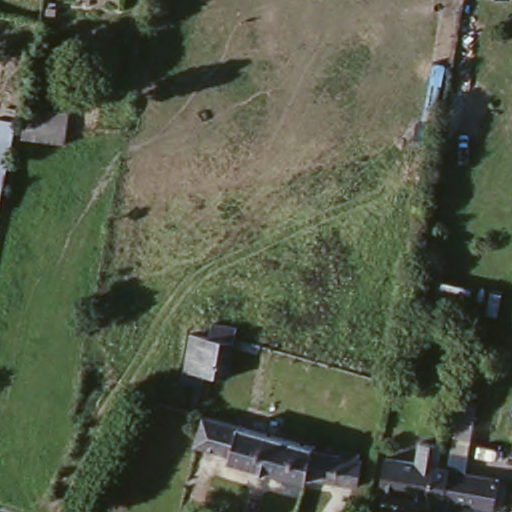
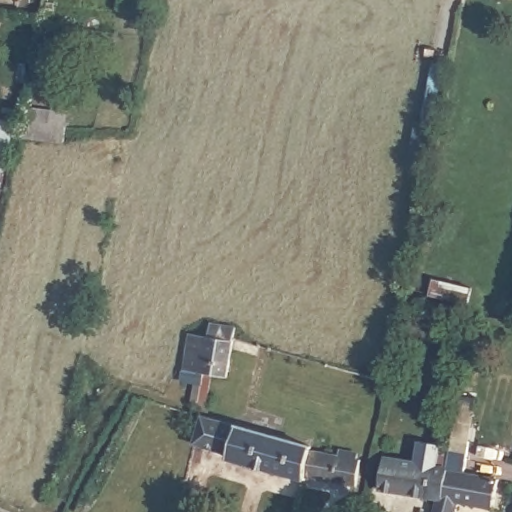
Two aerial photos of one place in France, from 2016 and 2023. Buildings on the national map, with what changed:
unchanged [(25,107),(70,114),(67,143),(21,138),(25,107)]
unchanged [(7,170),(0,204),(0,118),(16,121),(7,170)]
unchanged [(225,381),(208,379),(203,408),(194,406),(187,405),(190,386),(180,384),(189,336),(204,338),(207,321),(233,325),(230,345),(225,381)]
unchanged [(199,413),(303,443),(302,447),(296,471),(294,476),(222,458),(222,452),(191,442),(199,413)]
unchanged [(336,458),(339,449),(358,455),(356,465),(352,487),(296,471),(302,447),(336,458)]
unchanged [(417,468),(419,449),(440,453),(438,472),(448,473),(441,502),(382,495),(387,464),(417,468)]
unchanged [(448,473),(496,478),(492,509),(456,504),(454,512),(438,512),(441,502),(448,473)]

